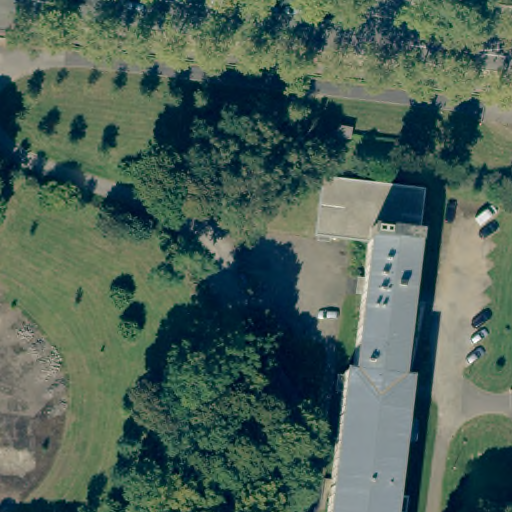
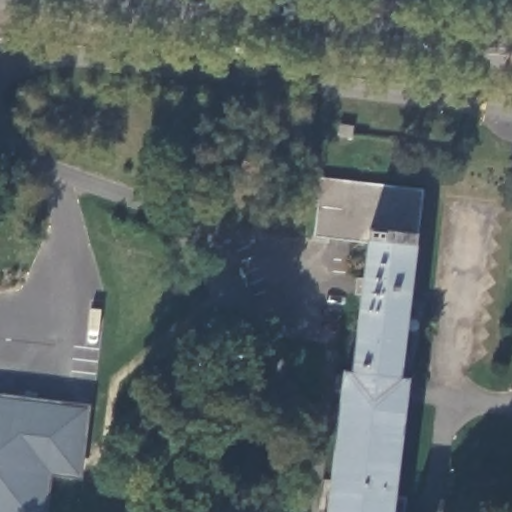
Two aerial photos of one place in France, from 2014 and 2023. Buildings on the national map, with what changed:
unchanged [(336,135),(337,124),(352,125),(351,137),(336,135)]
unchanged [(354,374),(370,242),(315,235),(322,178),(423,191),(400,380),(410,381),(395,497),(405,498),(403,512),(328,512),(345,373),(354,374)]
new [(52,478),(49,512),(0,512),(0,396),(91,408),(82,480),(52,478)]

